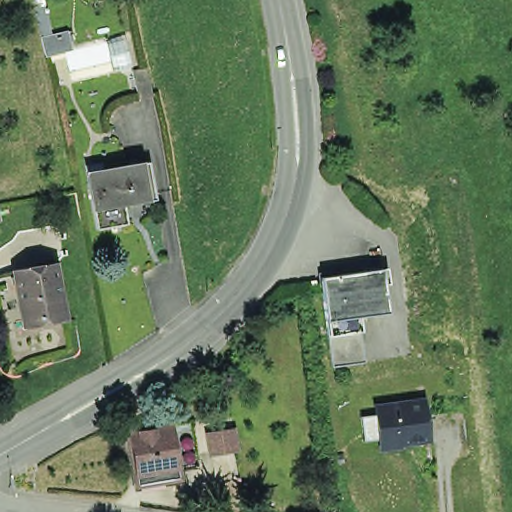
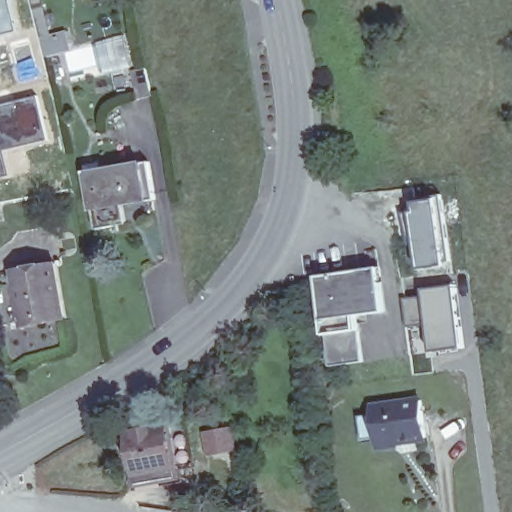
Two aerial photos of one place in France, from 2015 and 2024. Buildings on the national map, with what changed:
new [(12,0),(20,33),(0,38),(0,0),(12,0)]
unchanged [(117,38),(124,67),(72,81),(65,50),(43,54),(30,3),(45,1),(53,29),(69,28),(73,49),(117,38)]
unchanged [(154,90),(139,94),(132,65),(147,61),(154,90)]
new [(40,94),(50,142),(6,152),(11,175),(0,178),(0,104),(40,94)]
unchanged [(152,199),(112,206),(115,225),(92,229),(82,172),(81,164),(97,161),(99,169),(145,161),(152,199)]
new [(444,197),(453,264),(427,267),(416,211),(421,211),(420,201),(444,197)]
unchanged [(23,327),(22,320),(13,270),(55,263),(64,313),(65,319),(23,327)]
unchanged [(324,349),(314,276),(376,267),(382,310),(353,314),(357,344),(359,361),(326,366),(324,349)]
new [(455,286),(461,347),(432,352),(423,289),(455,286)]
unchanged [(365,410),(380,408),(379,402),(394,400),(422,396),(428,395),(433,432),(427,433),(404,436),(400,442),(399,442),(390,443),(384,439),(383,433),(368,435),(365,410)]
unchanged [(173,476),(133,484),(124,432),(164,424),(173,476)]
unchanged [(216,446),(214,432),(234,429),(237,442),(216,446)]

